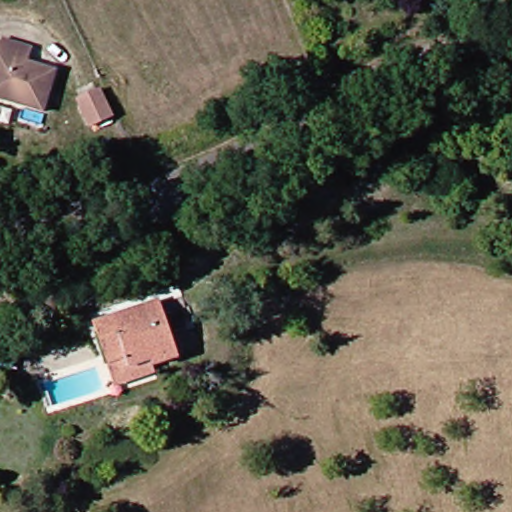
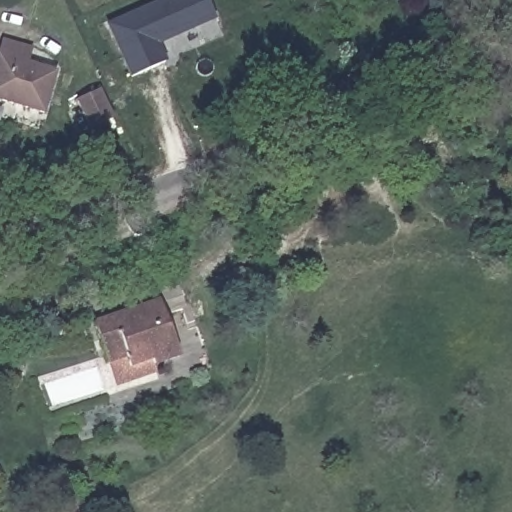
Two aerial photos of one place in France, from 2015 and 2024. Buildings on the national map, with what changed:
new [(161,0),(210,0),(217,15),(159,41),(166,60),(134,74),(110,22),(161,0)]
unchanged [(30,68),(57,76),(45,114),(0,100),(0,59),(5,42),(34,50),(30,68)]
new [(93,127),(80,96),(103,89),(115,118),(93,127)]
demolished [(84,142),(71,112),(94,105),(105,134),(84,142)]
unchanged [(115,387),(108,366),(96,325),(161,302),(163,307),(187,300),(190,310),(165,316),(179,360),(155,368),(156,375),(115,387)]

